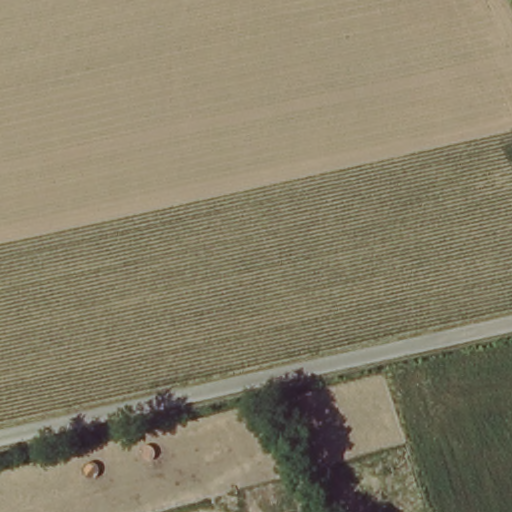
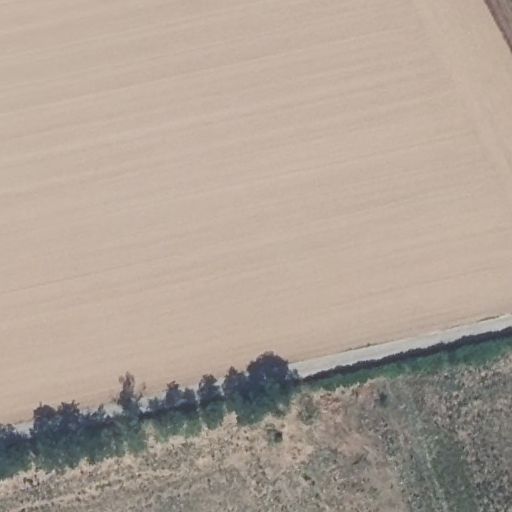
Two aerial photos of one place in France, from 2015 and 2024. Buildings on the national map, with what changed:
[]

